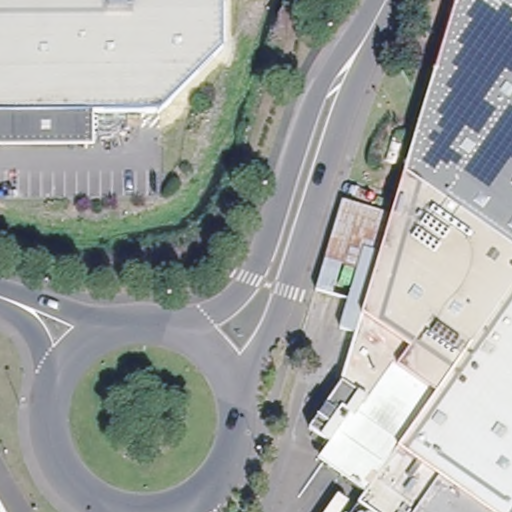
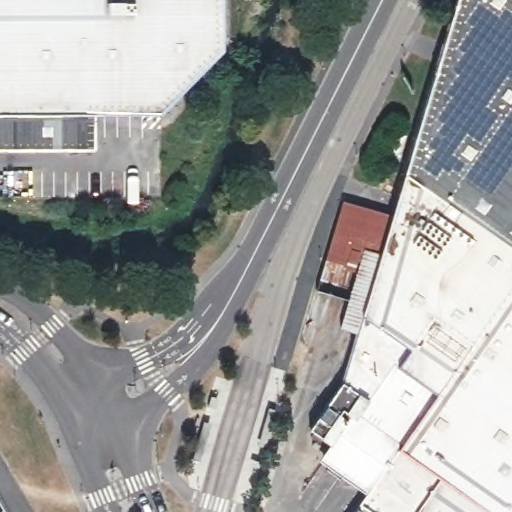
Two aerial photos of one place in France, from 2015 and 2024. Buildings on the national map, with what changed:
unchanged [(162,115),(92,116),(92,147),(0,147),(0,0),(227,0),(228,42),(162,115)]
unchanged [(390,214),(439,34),(449,0),(512,0),(512,512),(356,512),(371,490),(329,460),(338,446),(311,426),(344,380),(354,331),(338,326),(345,297),(317,288),(330,240),(344,200),(390,214)]

